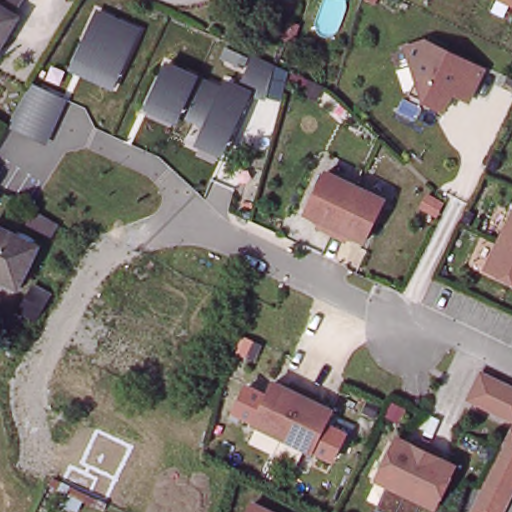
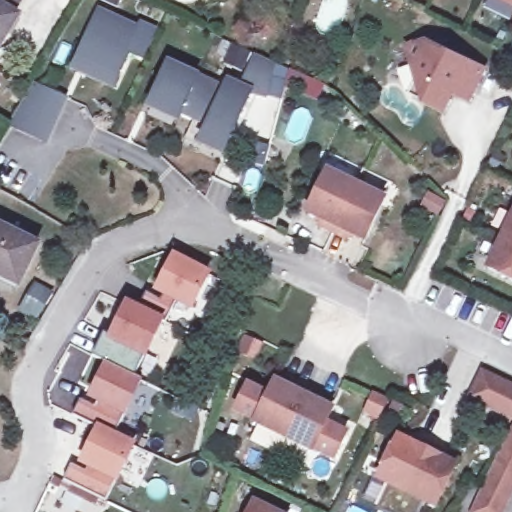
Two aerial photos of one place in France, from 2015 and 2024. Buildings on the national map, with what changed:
unchanged [(512,6),(498,0),(512,0),(512,6)]
unchanged [(18,16),(0,47),(0,6),(18,16)]
unchanged [(143,26),(113,87),(69,67),(98,6),(143,26)]
unchanged [(512,7),(512,17),(508,15),(512,7)]
unchanged [(456,88),(446,106),(428,97),(412,90),(419,74),(409,43),(429,36),(487,65),(474,90),(472,96),(456,88)]
unchanged [(283,100),(266,96),(266,101),(243,97),(247,89),(238,85),(253,55),(289,71),(283,100)]
unchanged [(201,70),(199,74),(221,84),(223,77),(238,85),(247,89),(243,97),(218,146),(197,136),(206,110),(186,103),(179,118),(146,102),(167,56),(201,70)]
unchanged [(64,98),(39,145),(6,126),(30,80),(64,98)]
new [(489,166),(494,155),(502,159),(497,170),(489,166)]
unchanged [(321,222),(324,216),(309,210),(329,168),(358,182),(353,192),(335,229),(321,222)]
unchanged [(387,196),(366,237),(351,230),(349,235),(335,229),(353,192),(358,182),(387,196)]
new [(430,195),(444,201),(438,214),(424,206),(430,195)]
new [(469,207),(478,212),(472,223),(463,219),(469,207)]
unchanged [(512,239),(504,235),(512,217),(512,239)]
unchanged [(41,245),(23,280),(0,269),(0,224),(41,245)]
unchanged [(512,275),(489,264),(504,235),(512,239),(512,275)]
new [(149,294),(163,301),(167,295),(160,291),(176,257),(211,275),(194,308),(179,301),(168,325),(141,311),(149,294)]
new [(19,307),(34,283),(51,293),(36,317),(19,307)]
new [(82,402),(97,410),(100,404),(89,399),(107,363),(94,356),(103,343),(116,350),(119,345),(108,340),(128,302),(142,308),(141,311),(165,323),(148,358),(136,379),(144,382),(125,418),(115,437),(101,430),(75,416),(82,402)]
unchanged [(512,415),(508,413),(468,394),(481,367),(512,382),(512,415)]
unchanged [(256,421),(277,380),(292,387),(295,382),(309,388),(285,435),(256,421)]
unchanged [(309,388),(322,395),(319,401),(334,408),(314,450),(285,435),(309,388)]
unchanged [(512,486),(499,512),(467,512),(479,484),(499,443),(509,423),(512,424),(512,486)]
new [(74,466),(88,473),(91,467),(84,463),(100,430),(134,447),(107,502),(66,482),(74,466)]
unchanged [(406,491),(376,476),(398,435),(412,442),(415,436),(429,443),(406,491)]
unchanged [(443,450),(440,455),(454,462),(434,505),(406,491),(429,443),(443,450)]
unchanged [(281,512),(245,512),(252,497),(281,512)]

